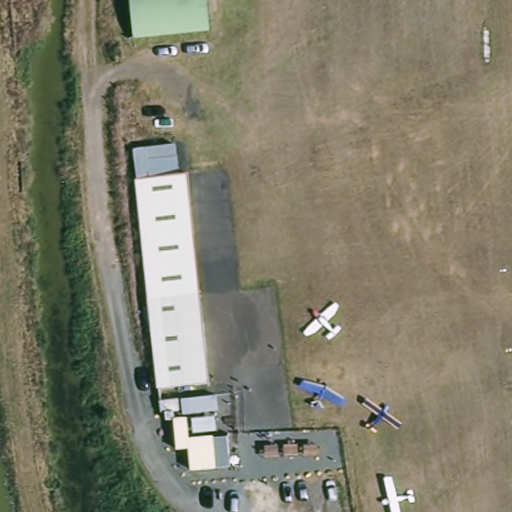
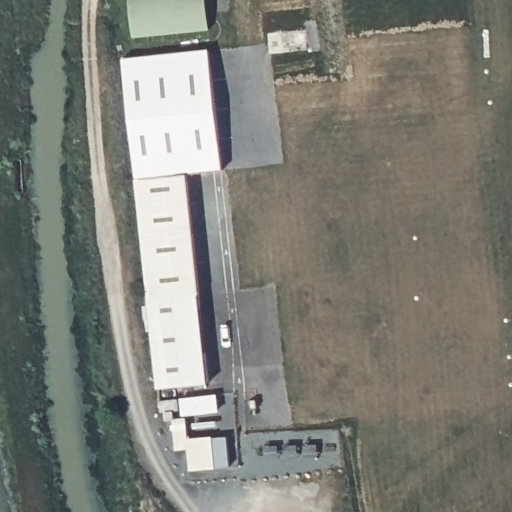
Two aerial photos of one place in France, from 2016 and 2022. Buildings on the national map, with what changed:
unchanged [(204,0),(208,43),(132,50),(127,1),(143,0),(204,0)]
new [(124,60),(209,49),(225,169),(189,174),(138,179),(124,60)]
unchanged [(138,179),(189,174),(209,384),(159,390),(138,179)]
unchanged [(215,429),(216,444),(182,449),(180,434),(215,429)]
unchanged [(176,434),(177,444),(159,444),(158,436),(176,434)]

